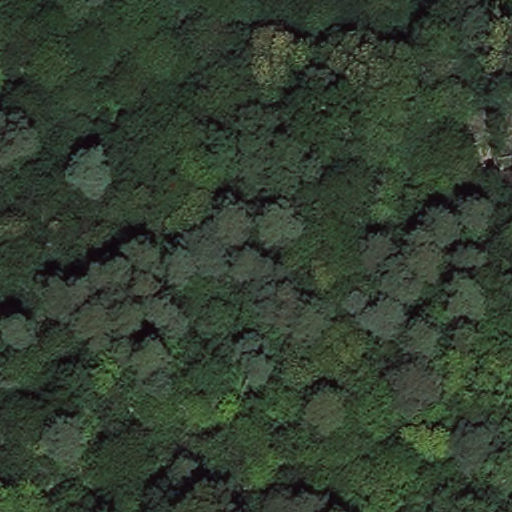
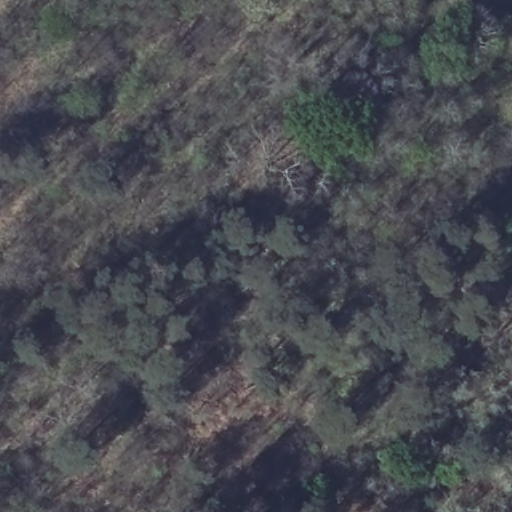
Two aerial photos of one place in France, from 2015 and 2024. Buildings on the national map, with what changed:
[]

